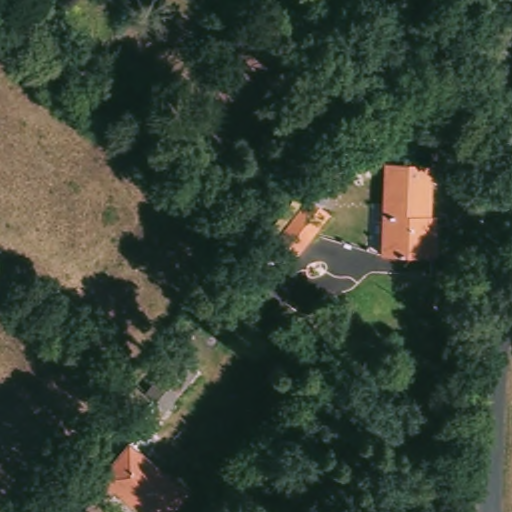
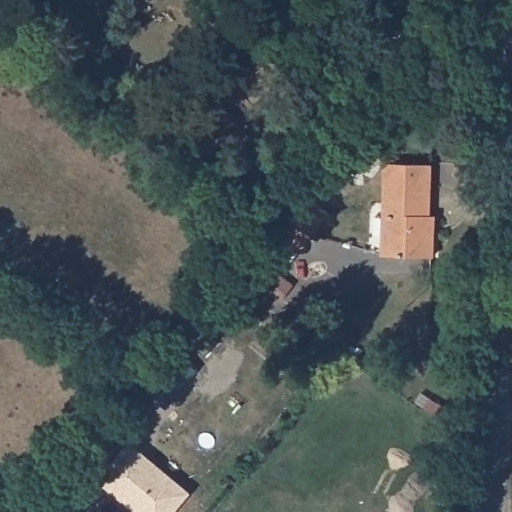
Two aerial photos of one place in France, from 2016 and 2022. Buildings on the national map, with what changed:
unchanged [(431,235),(430,260),(377,255),(385,162),(429,165),(424,217),(432,218),(431,235)]
unchanged [(332,211),(297,252),(281,236),(314,194),(332,211)]
unchanged [(134,448),(187,501),(175,512),(131,512),(100,482),(107,475),(134,448)]

